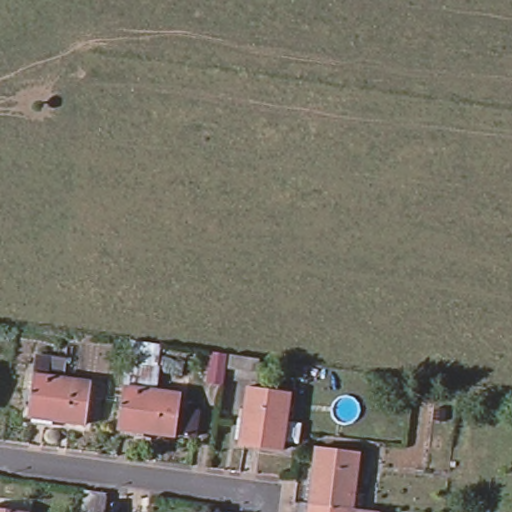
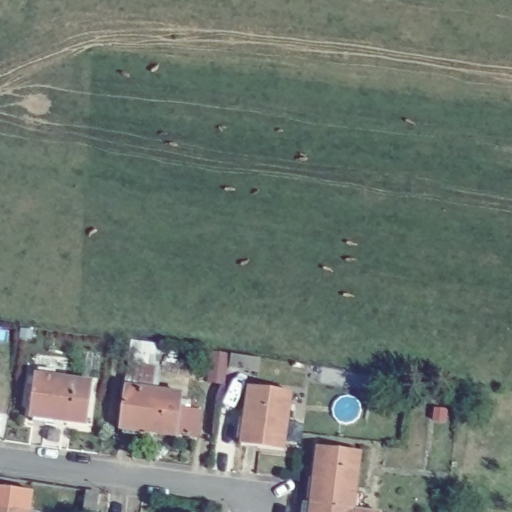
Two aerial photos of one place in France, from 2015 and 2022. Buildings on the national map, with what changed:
unchanged [(95,383),(89,425),(32,417),(37,376),(95,383)]
unchanged [(193,438),(174,435),(174,437),(117,430),(123,388),(180,396),(178,410),(197,412),(193,438)]
unchanged [(293,394),(285,451),(243,446),(251,388),(293,394)]
unchanged [(357,454),(351,510),(309,505),(315,449),(357,454)]
unchanged [(88,489),(111,492),(108,512),(85,512),(88,489)]
unchanged [(309,505),(351,510),(350,512),(308,512),(309,505)]
unchanged [(12,512),(0,512),(0,511),(12,512)]

